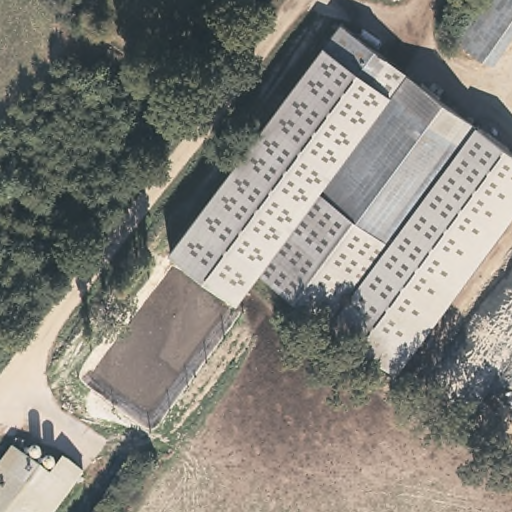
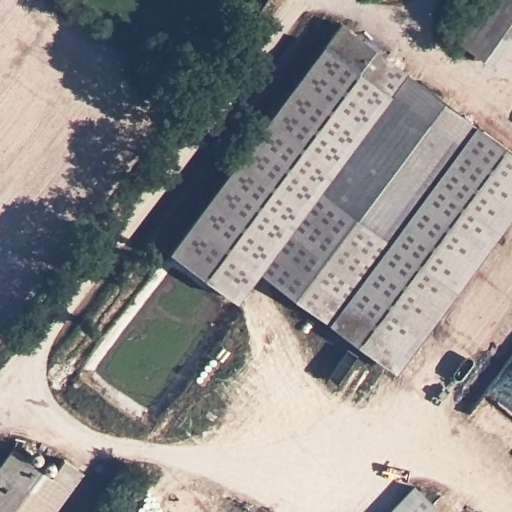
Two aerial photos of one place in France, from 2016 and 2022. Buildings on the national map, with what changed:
unchanged [(485,59),(451,35),(475,0),(512,0),(512,20),(485,59)]
unchanged [(341,28),(385,58),(371,79),(369,80),(323,47),(329,39),(338,26),(341,28)]
unchanged [(369,80),(371,79),(462,145),(475,123),(512,149),(512,187),(387,363),(259,272),(237,302),(170,255),(323,47),(369,80)]
unchanged [(61,451),(80,466),(45,512),(0,512),(0,452),(9,440),(48,469),(61,451)]
new [(444,512),(388,512),(414,484),(444,512)]

